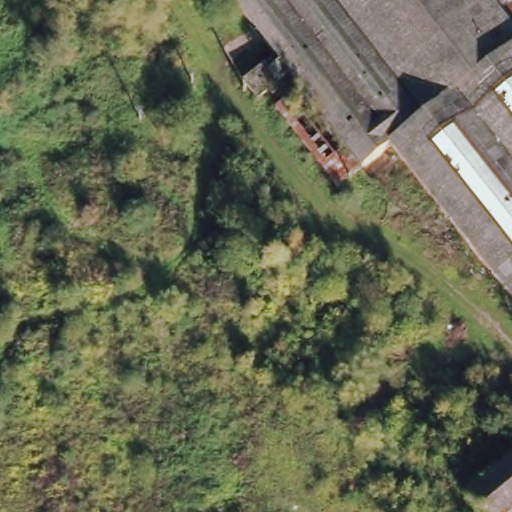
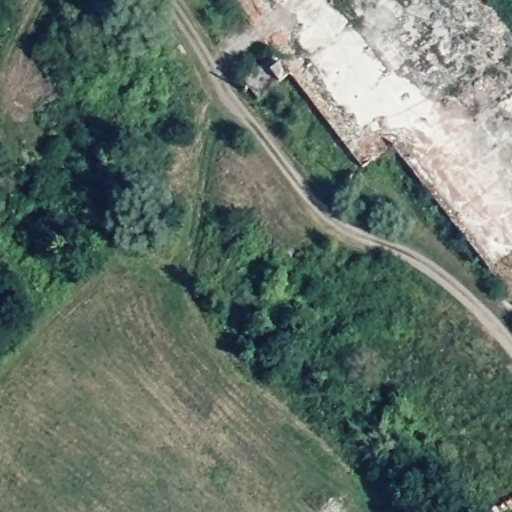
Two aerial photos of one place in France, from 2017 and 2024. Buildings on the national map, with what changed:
demolished [(333,191),(243,81),(271,58),(226,0),(512,0),(512,305),(389,148),(333,191)]
demolished [(512,455),(512,512),(475,512),(460,493),(512,455)]

